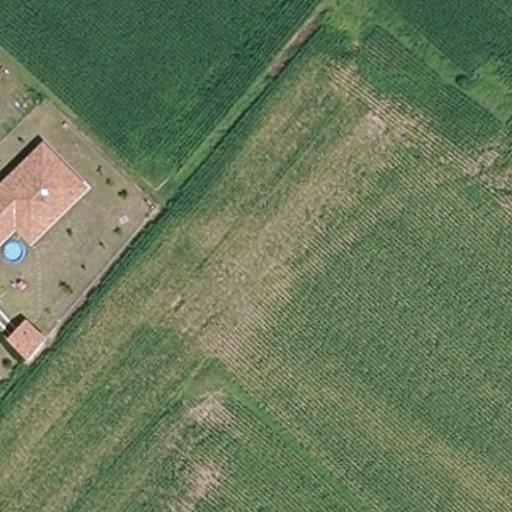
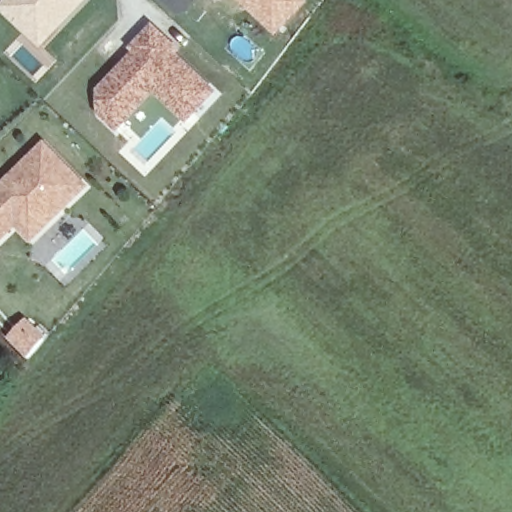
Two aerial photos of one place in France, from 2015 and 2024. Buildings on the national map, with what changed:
new [(88,0),(40,49),(0,11),(0,5),(4,0),(88,0)]
new [(275,37),(236,0),(305,0),(308,2),(275,37)]
new [(99,115),(100,93),(135,51),(133,49),(154,29),(177,53),(174,56),(215,92),(187,123),(153,93),(118,130),(99,115)]
unchanged [(16,222),(0,238),(0,186),(9,178),(25,161),(43,144),(84,185),(45,224),(31,238),(16,222)]
unchanged [(43,341),(35,349),(26,339),(34,332),(43,341)]

